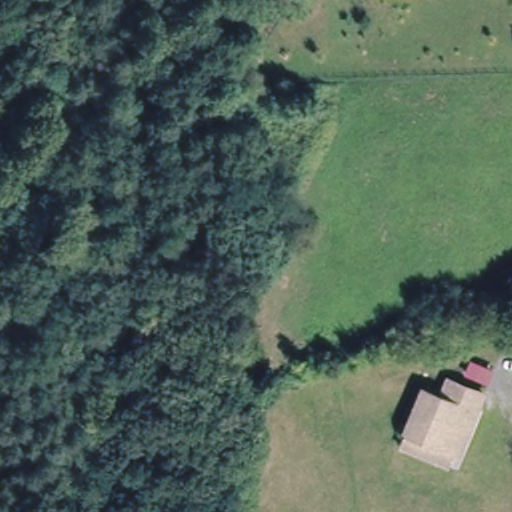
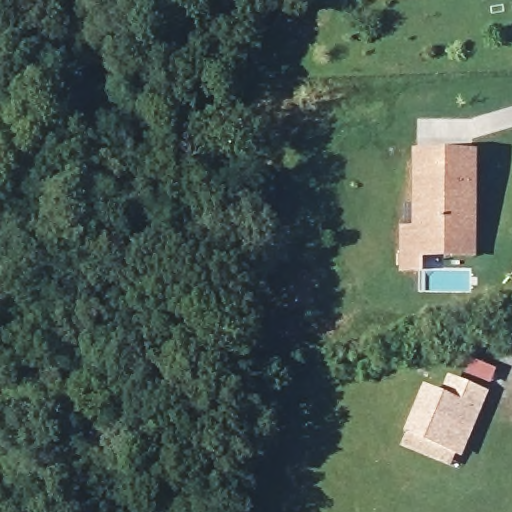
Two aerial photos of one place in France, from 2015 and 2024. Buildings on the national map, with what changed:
new [(477,152),(477,260),(422,257),(422,273),(398,272),(398,227),(411,227),(411,152),(477,152)]
unchanged [(423,394),(440,402),(448,384),(485,401),(461,460),(405,436),(423,394)]

